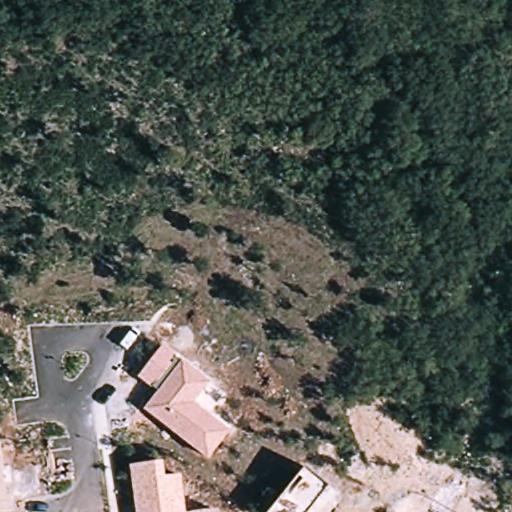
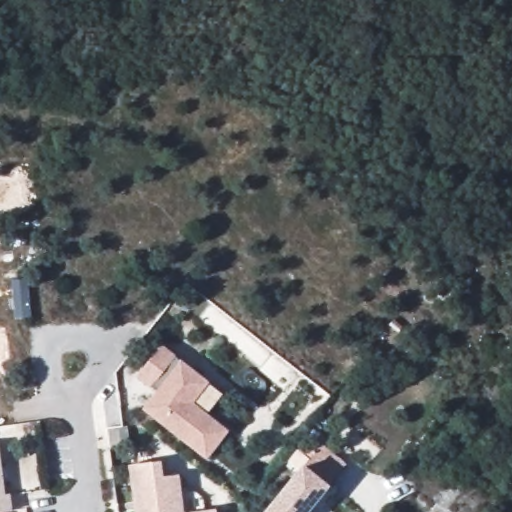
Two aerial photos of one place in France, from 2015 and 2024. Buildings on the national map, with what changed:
unchanged [(212,381),(196,404),(231,430),(209,461),(146,409),(159,390),(139,377),(162,345),(183,360),(212,381)]
new [(331,486),(311,512),(266,512),(304,464),(321,444),(346,464),(331,486)]
unchanged [(11,493),(13,508),(0,509),(0,447),(5,493),(11,493)]
unchanged [(162,459),(166,476),(181,473),(186,511),(216,508),(216,512),(137,512),(130,465),(162,459)]

